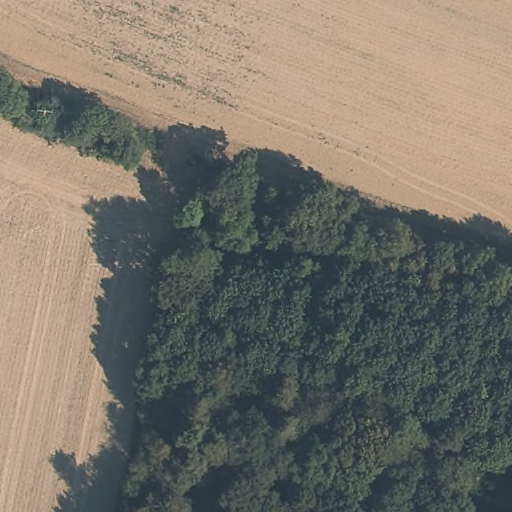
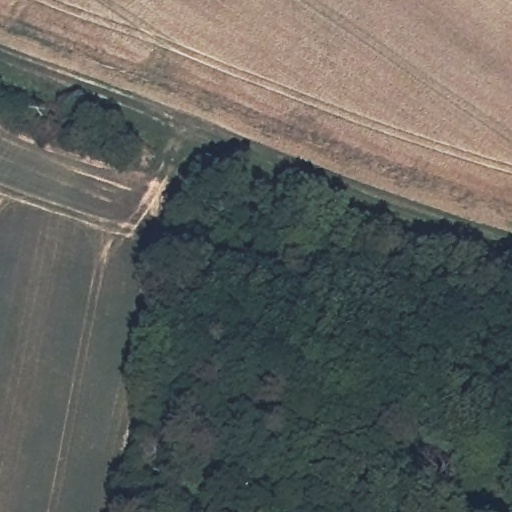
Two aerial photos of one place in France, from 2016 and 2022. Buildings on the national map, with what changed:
[]

